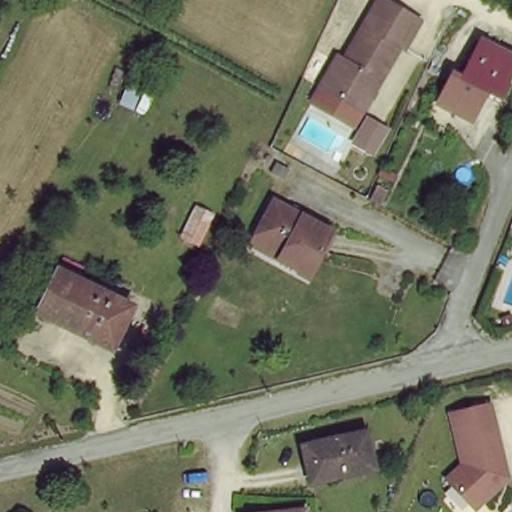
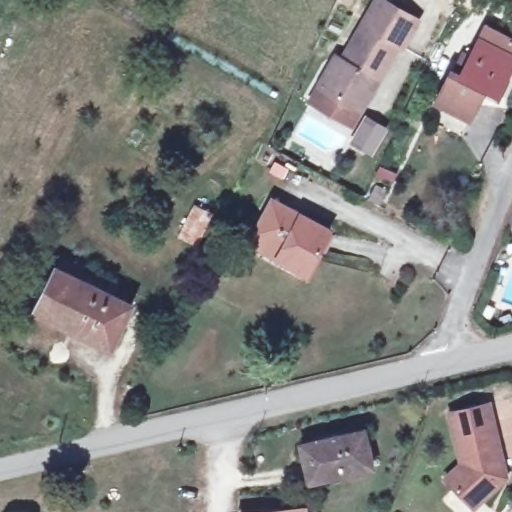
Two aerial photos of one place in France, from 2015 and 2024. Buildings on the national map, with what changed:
unchanged [(397,46),(358,114),(314,89),(331,56),(339,60),(369,0),(381,0),(418,18),(401,47),(397,46)]
unchanged [(478,37),(512,53),(512,60),(495,95),(482,88),(467,120),(432,102),(447,71),(456,76),(478,37)]
unchanged [(253,232),(269,197),(327,229),(303,272),(272,257),(247,246),(253,232)]
unchanged [(194,248),(179,240),(196,207),(211,217),(194,248)]
unchanged [(130,302),(110,348),(37,312),(59,267),(130,302)]
unchanged [(487,398),(502,476),(467,506),(441,480),(460,462),(448,407),(487,398)]
unchanged [(370,465),(314,478),(303,441),(359,427),(370,465)]
unchanged [(303,512),(269,512),(302,507),(303,512)]

